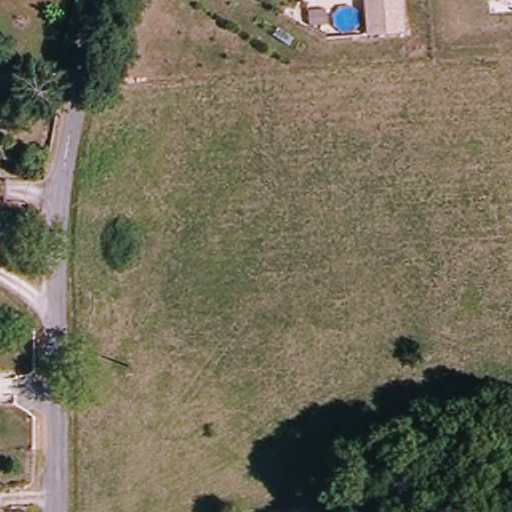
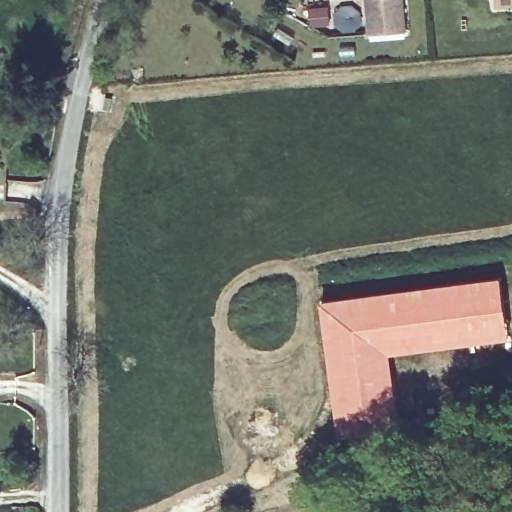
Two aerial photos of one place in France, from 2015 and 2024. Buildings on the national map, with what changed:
new [(372,33),(370,0),(405,0),(407,31),(372,33)]
new [(502,275),(510,341),(391,356),(401,431),(336,440),(320,300),(502,275)]

